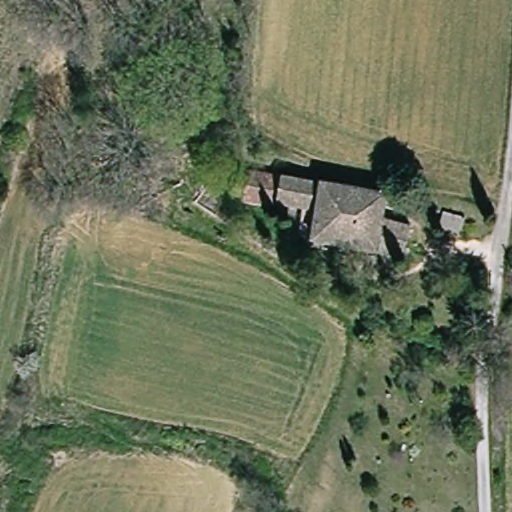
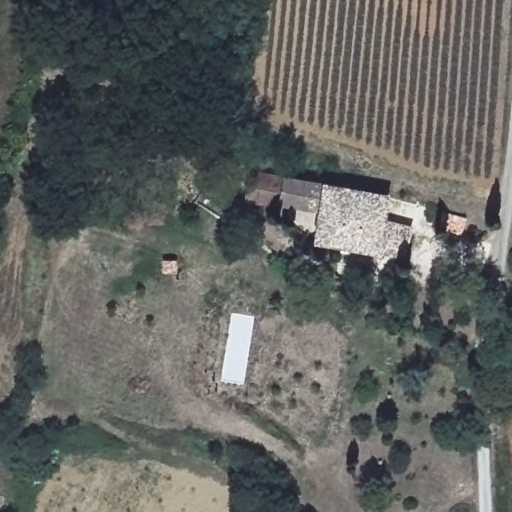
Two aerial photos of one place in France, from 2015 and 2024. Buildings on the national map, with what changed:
unchanged [(382,218),(413,225),(407,259),(297,236),(301,210),(274,204),(240,197),(247,171),(281,177),(385,196),(382,218)]

